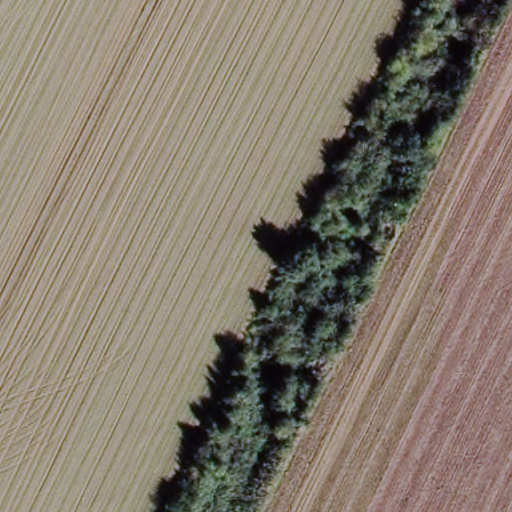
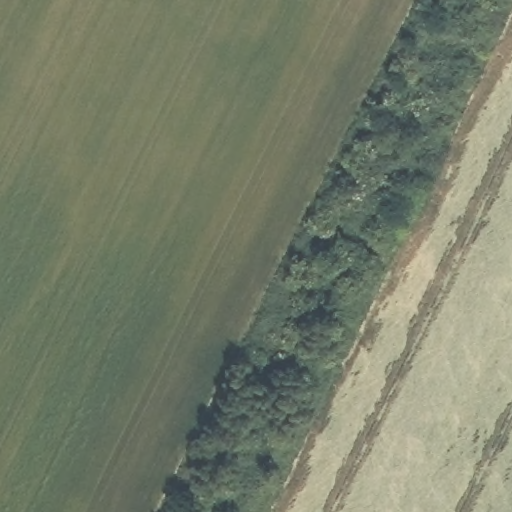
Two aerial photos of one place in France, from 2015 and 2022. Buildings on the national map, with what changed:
[]

